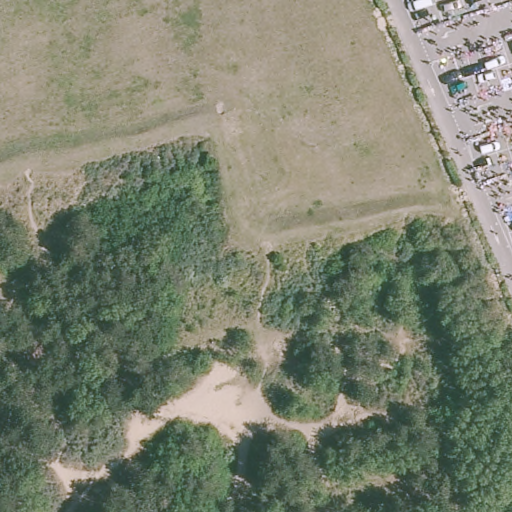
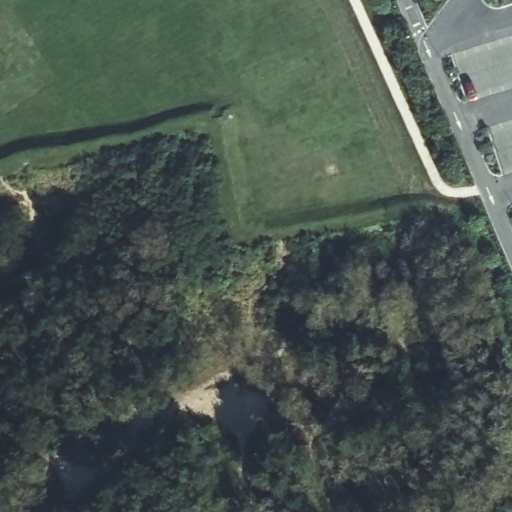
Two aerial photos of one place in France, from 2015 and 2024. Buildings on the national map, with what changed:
[]

